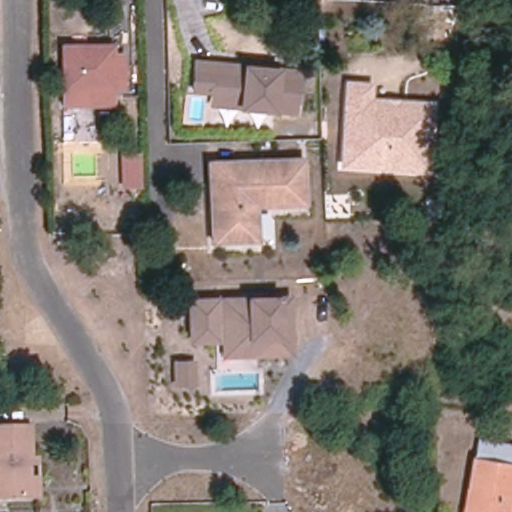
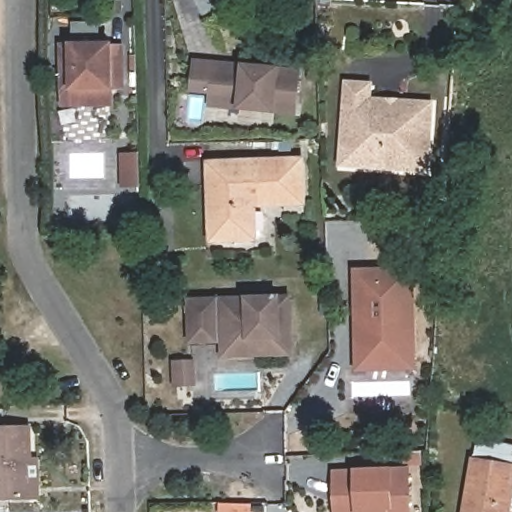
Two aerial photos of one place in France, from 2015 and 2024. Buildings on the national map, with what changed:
unchanged [(63,36),(113,36),(114,80),(114,95),(63,95),(63,52),(63,36)]
unchanged [(275,112),(237,110),(207,105),(208,93),(190,92),(193,59),(242,64),(281,67),(301,70),(296,115),(275,112)]
unchanged [(350,84),(370,85),(368,101),(433,105),(428,163),(428,173),(342,168),(343,149),(350,84)]
unchanged [(303,161),(305,204),(255,206),(256,240),(213,241),(210,165),(303,161)]
unchanged [(115,231),(114,216),(131,215),(132,230),(115,231)]
new [(418,371),(356,373),(355,270),(415,268),(418,371)]
unchanged [(290,352),(253,353),(252,337),(193,340),(193,300),(287,298),(290,352)]
unchanged [(20,499),(0,500),(0,430),(30,430),(32,460),(38,460),(39,499),(20,499)]
unchanged [(479,439),(512,445),(512,497),(510,512),(466,512),(475,461),(479,439)]
new [(411,471),(413,512),(340,512),(338,474),(411,471)]

